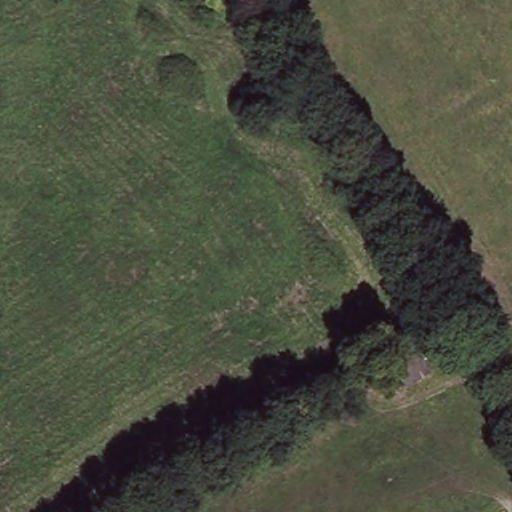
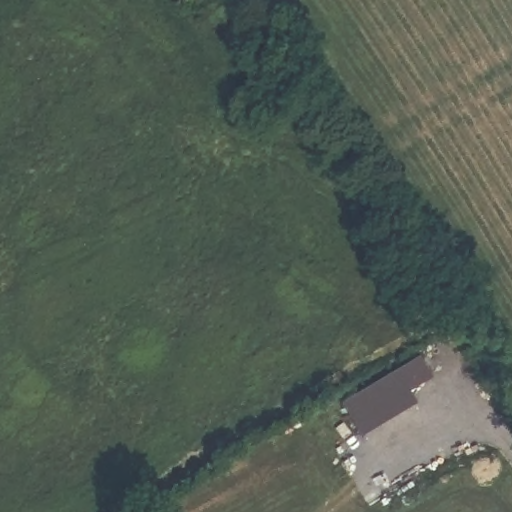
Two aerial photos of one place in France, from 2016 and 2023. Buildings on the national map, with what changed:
new [(418,354),(432,376),(412,386),(418,399),(361,434),(342,401),(418,354)]

